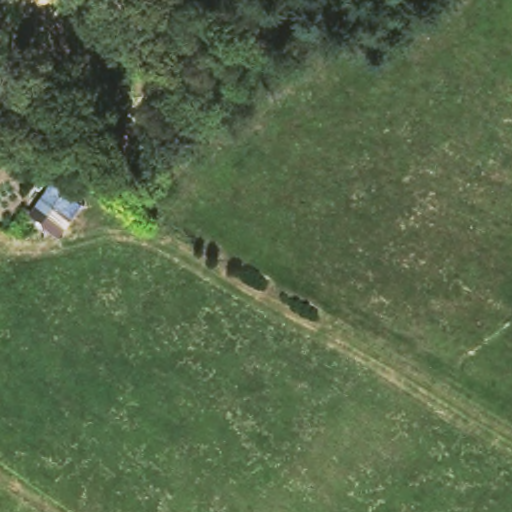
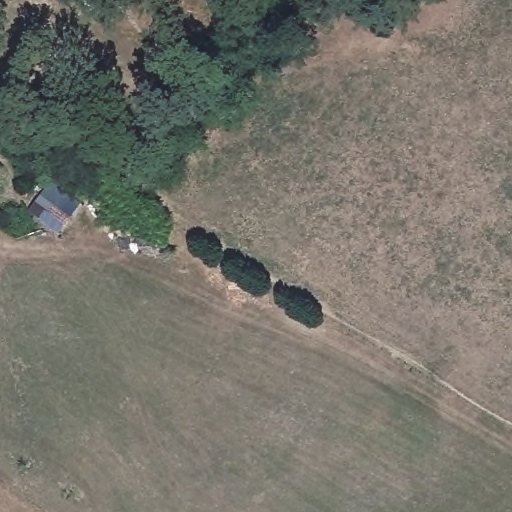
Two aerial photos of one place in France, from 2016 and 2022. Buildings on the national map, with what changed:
unchanged [(71,217),(51,206),(40,220),(31,212),(51,182),(80,204),(71,217)]

